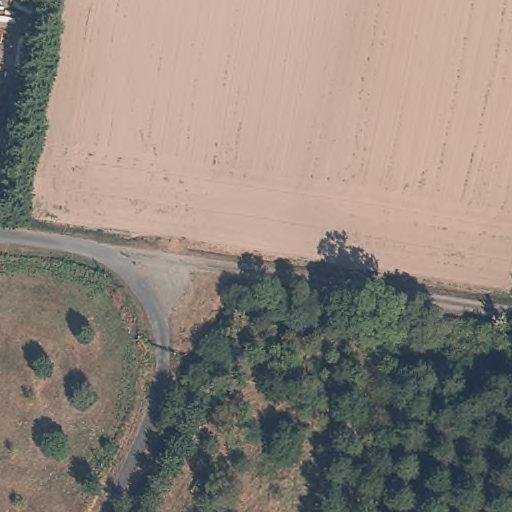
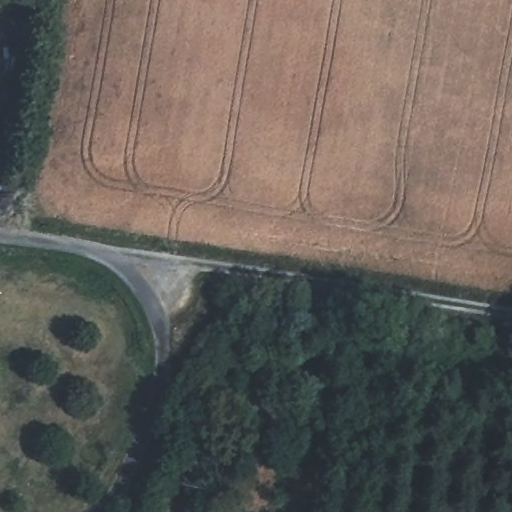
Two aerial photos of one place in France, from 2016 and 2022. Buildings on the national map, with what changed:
unchanged [(8,164),(2,185),(0,184),(0,162),(8,164)]

